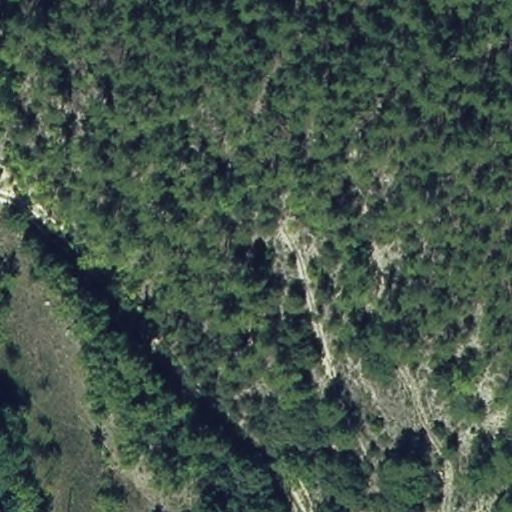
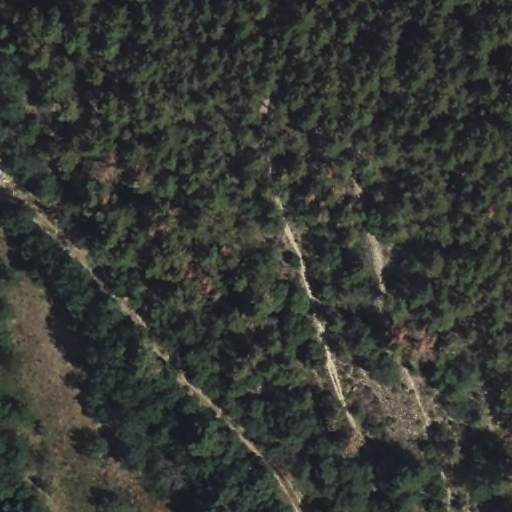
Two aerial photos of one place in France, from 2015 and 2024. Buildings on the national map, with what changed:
unchanged [(1,160),(0,161),(0,158),(1,160)]

